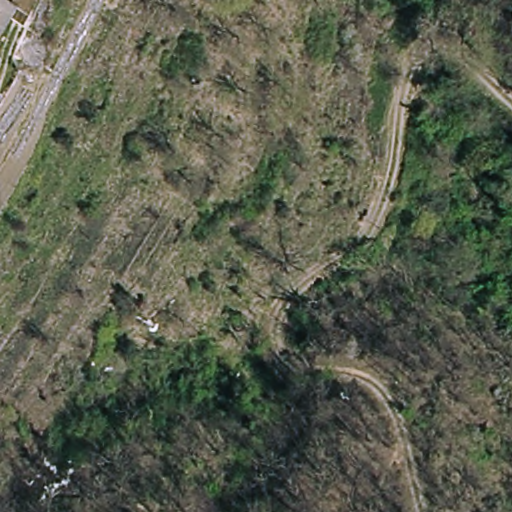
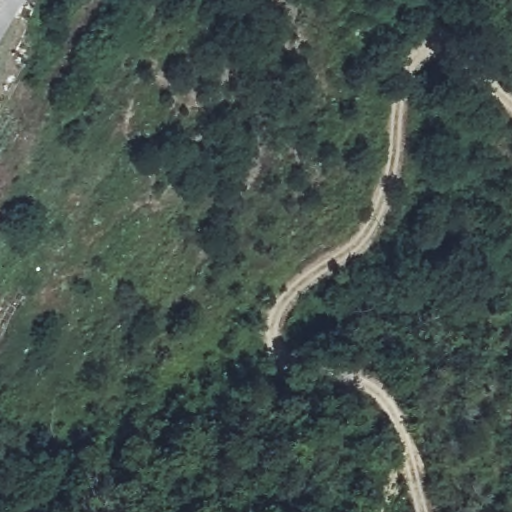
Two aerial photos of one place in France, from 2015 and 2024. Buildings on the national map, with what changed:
unchanged [(0,23),(0,0),(14,0),(0,23)]

